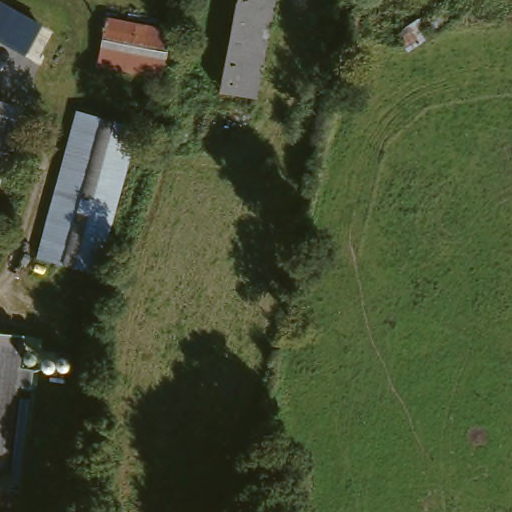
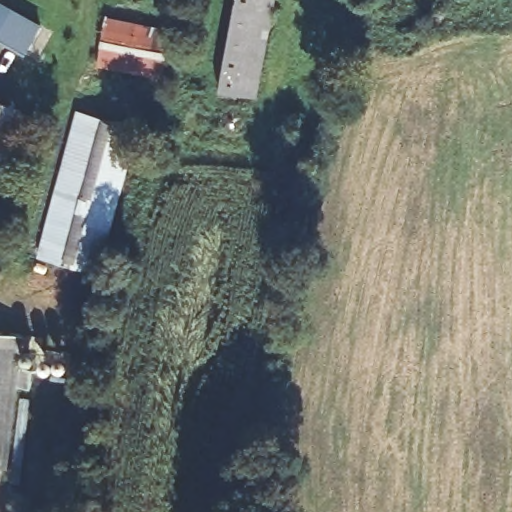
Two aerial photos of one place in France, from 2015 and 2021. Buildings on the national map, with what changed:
unchanged [(6,0),(0,12),(0,0),(6,0)]
unchanged [(220,89),(235,0),(273,0),(256,95),(220,89)]
unchanged [(124,12),(123,21),(131,22),(132,19),(168,25),(157,82),(91,71),(102,10),(107,10),(124,12)]
unchanged [(0,176),(0,14),(46,29),(0,176)]
unchanged [(135,130),(94,275),(34,261),(74,115),(135,130)]
unchanged [(17,350),(1,471),(0,470),(0,347),(17,350)]

